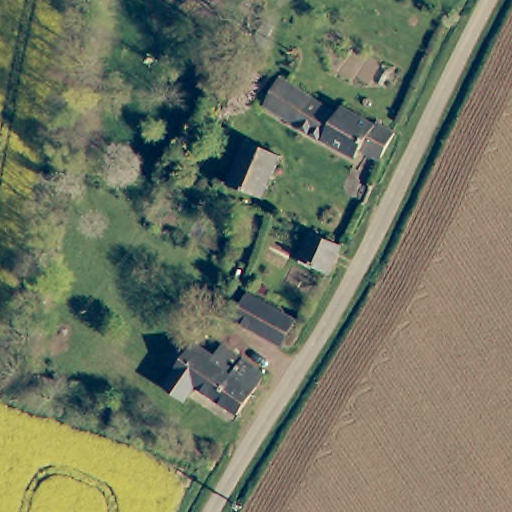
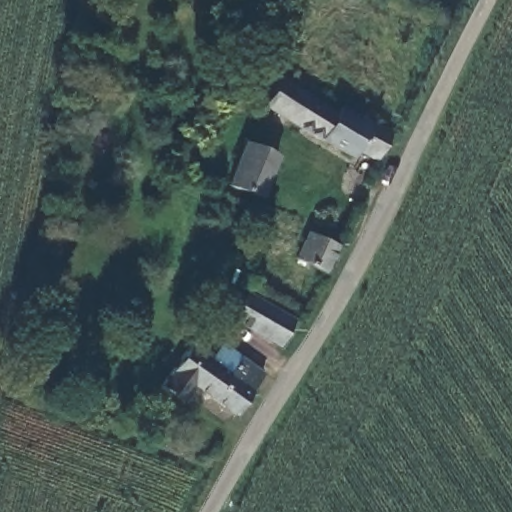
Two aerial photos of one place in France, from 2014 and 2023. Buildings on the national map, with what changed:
unchanged [(338,106),(393,133),(380,160),(362,151),(357,160),(264,108),(281,76),(336,110),(338,106)]
unchanged [(228,186),(244,143),(276,156),(260,199),(228,186)]
unchanged [(310,233),(340,246),(327,273),(297,260),(310,233)]
unchanged [(241,296),(296,324),(281,348),(227,320),(241,296)]
unchanged [(221,349),(263,377),(235,419),(194,389),(182,404),(161,387),(189,352),(194,346),(212,360),(221,349)]

